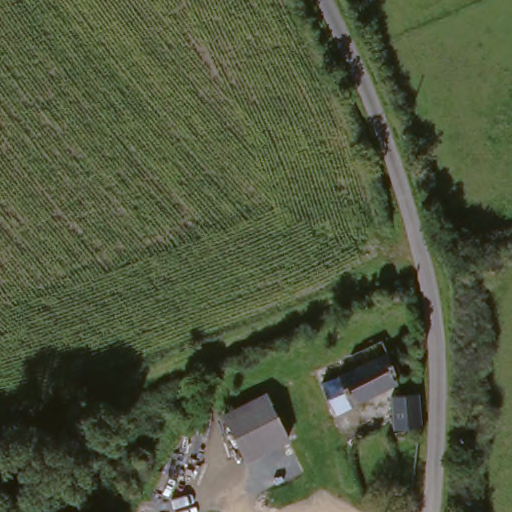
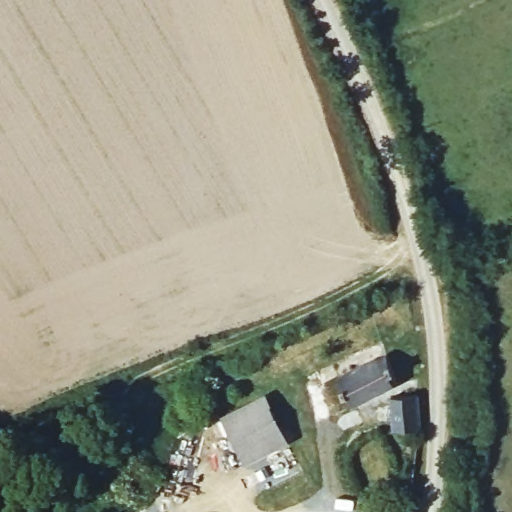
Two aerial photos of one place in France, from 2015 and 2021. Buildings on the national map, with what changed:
unchanged [(375,347),(392,384),(332,415),(312,380),(375,347)]
unchanged [(416,431),(391,431),(391,402),(418,402),(416,431)]
unchanged [(287,437),(292,445),(247,467),(225,425),(269,403),(287,437)]

